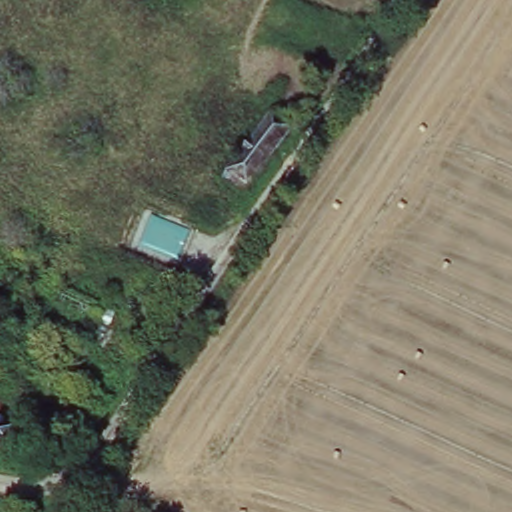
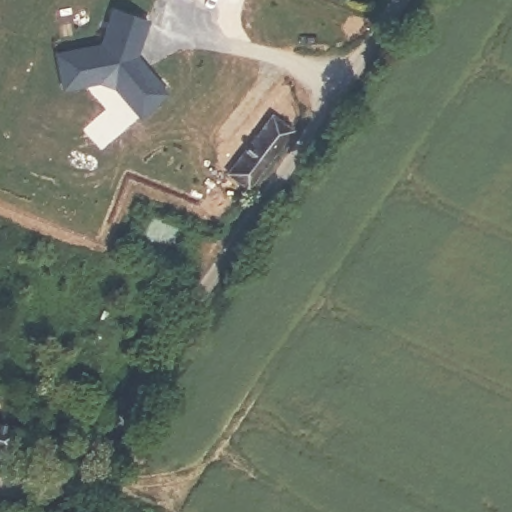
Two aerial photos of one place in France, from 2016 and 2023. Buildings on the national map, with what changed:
new [(103,46),(115,9),(152,20),(142,55),(173,95),(140,121),(114,90),(98,87),(62,93),(56,54),(103,46)]
unchanged [(291,125),(249,190),(230,180),(272,115),(291,125)]
demolished [(203,183),(236,210),(208,244),(175,217),(203,183)]
unchanged [(25,431),(14,454),(0,449),(0,424),(25,431)]

